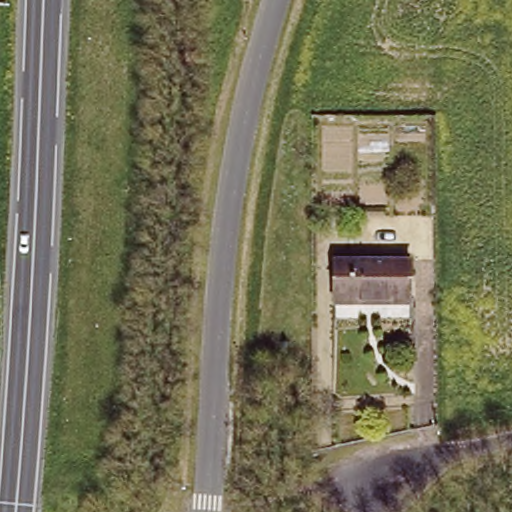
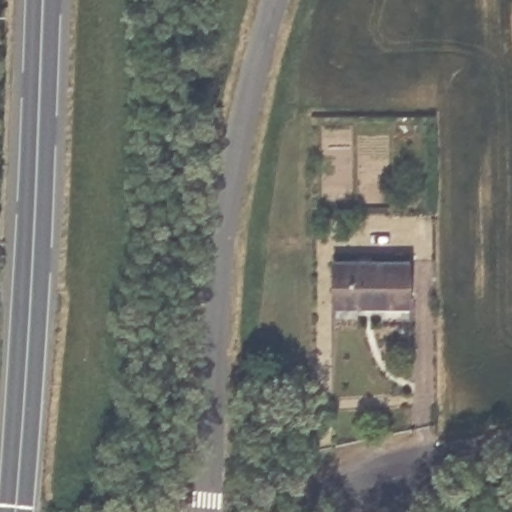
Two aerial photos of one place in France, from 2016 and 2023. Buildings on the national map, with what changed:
unchanged [(335,300),(334,263),(405,262),(406,299),(335,300)]

